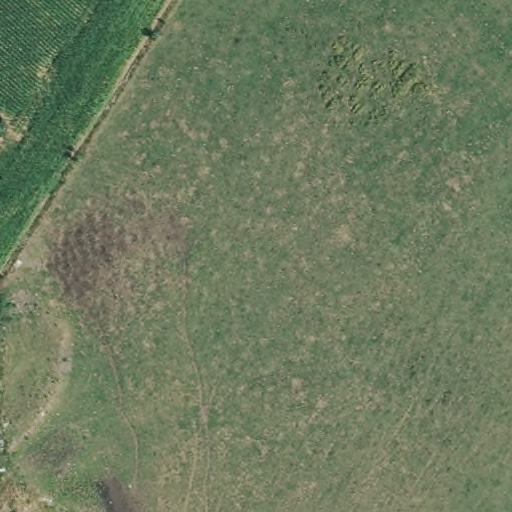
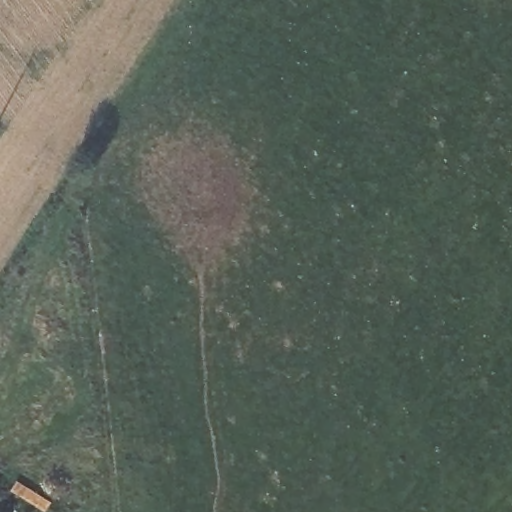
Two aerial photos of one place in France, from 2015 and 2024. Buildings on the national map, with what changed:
[]

